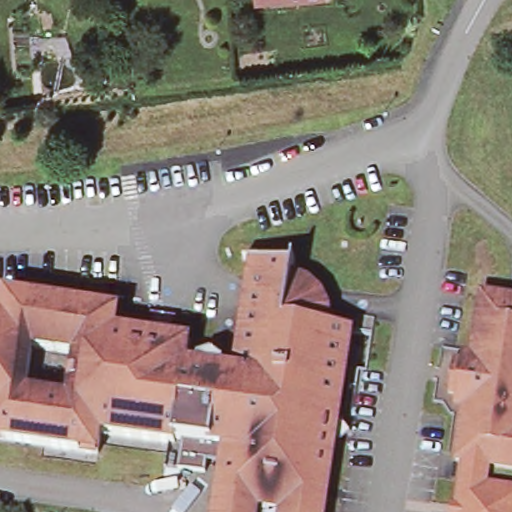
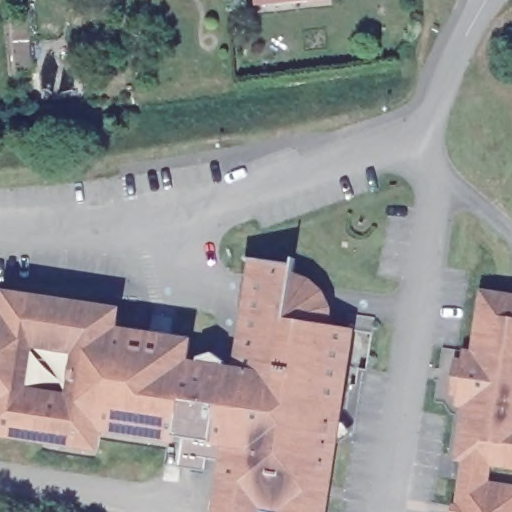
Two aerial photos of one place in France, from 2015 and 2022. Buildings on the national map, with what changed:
unchanged [(258,10),(257,0),(288,0),(289,7),(258,10)]
unchanged [(120,329),(195,341),(191,364),(240,370),(255,276),(247,274),(250,257),(297,265),(298,258),(300,259),(297,282),(317,285),(316,307),(327,307),(327,324),(357,329),(330,512),(219,512),(228,445),(213,443),(210,468),(170,462),(173,437),(105,428),(102,448),(0,434),(0,302),(28,302),(28,295),(105,307),(103,317),(105,317),(122,320),(120,329)]
unchanged [(471,395),(455,392),(460,361),(475,363),(482,325),(487,292),(512,296),(512,467),(492,463),(469,460),(461,459),(471,395)]
unchanged [(490,484),(512,487),(512,512),(457,512),(458,506),(462,506),(463,500),(469,460),(492,463),(490,484)]

